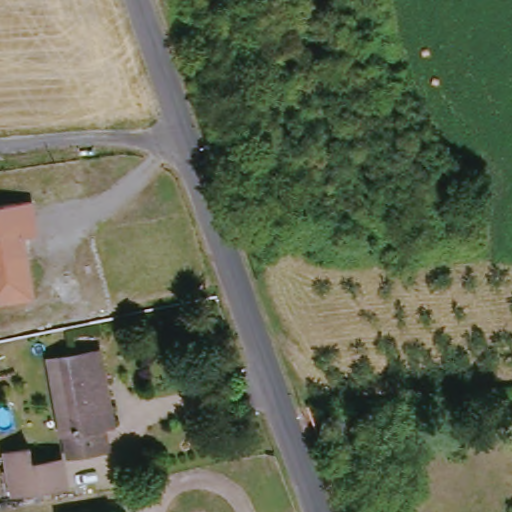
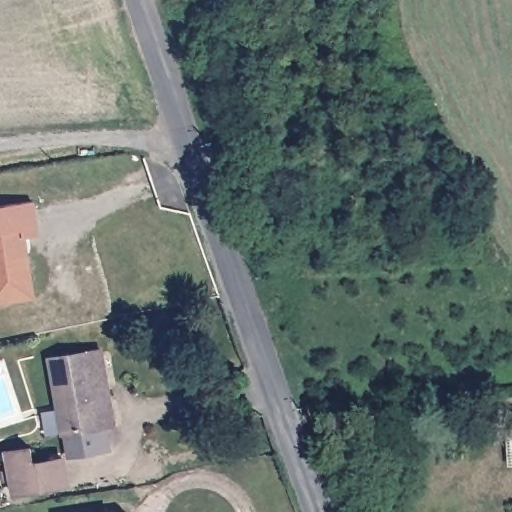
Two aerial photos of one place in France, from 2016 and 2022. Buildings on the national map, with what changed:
unchanged [(32,203),(36,237),(16,240),(18,249),(25,255),(31,299),(0,303),(0,206),(32,203)]
unchanged [(98,350),(112,425),(102,429),(105,451),(59,456),(58,450),(43,359),(98,350)]
unchanged [(66,486),(12,497),(8,475),(0,476),(0,474),(0,467),(4,466),(1,446),(25,439),(29,457),(58,450),(59,456),(66,486)]

